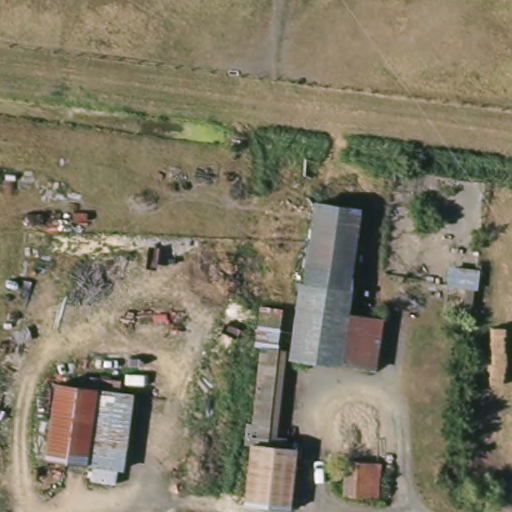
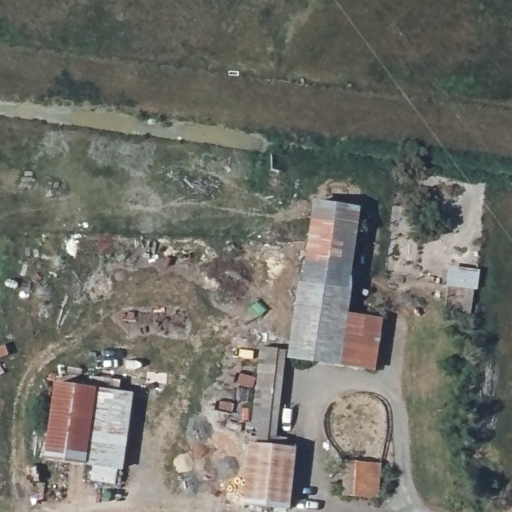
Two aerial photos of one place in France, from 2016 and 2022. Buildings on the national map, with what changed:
unchanged [(365,206),(352,312),(385,316),(378,367),(290,357),(298,278),(308,280),(318,199),(365,206)]
unchanged [(257,336),(257,327),(276,328),(275,339),(274,356),(268,420),(283,422),(282,434),(294,437),(285,512),(241,512),(255,353),(257,336)]
unchanged [(99,387),(89,463),(44,457),(53,380),(99,387)]
unchanged [(135,392),(125,469),(89,463),(98,395),(99,387),(135,392)]
unchanged [(348,458),(385,462),(381,497),(344,491),(348,458)]

